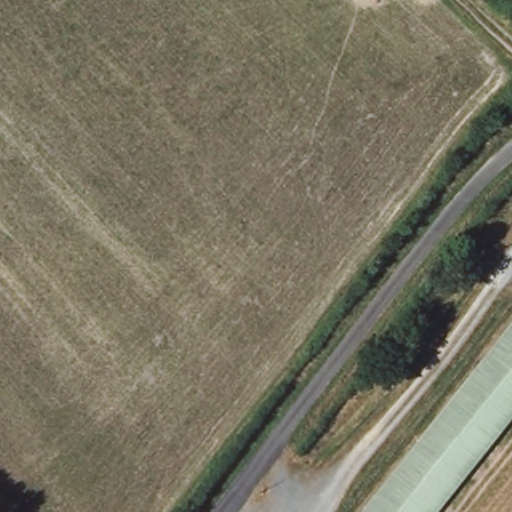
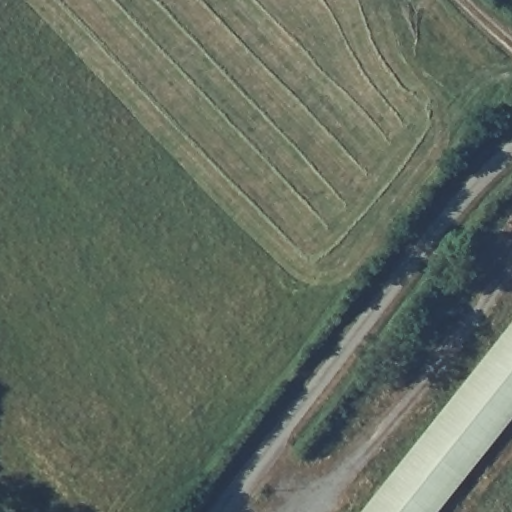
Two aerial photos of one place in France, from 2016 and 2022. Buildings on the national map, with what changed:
unchanged [(362,512),(512,323),(512,418),(438,512),(362,512)]

